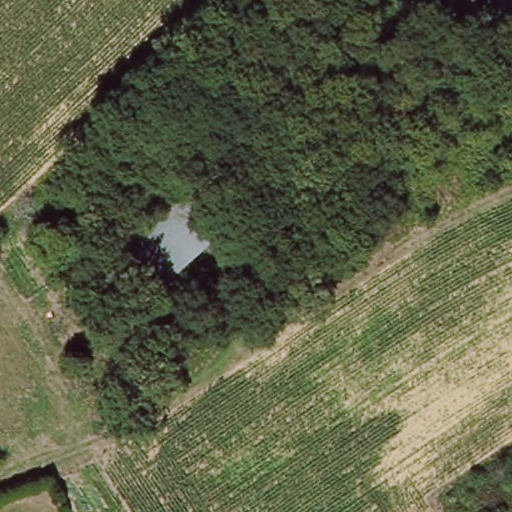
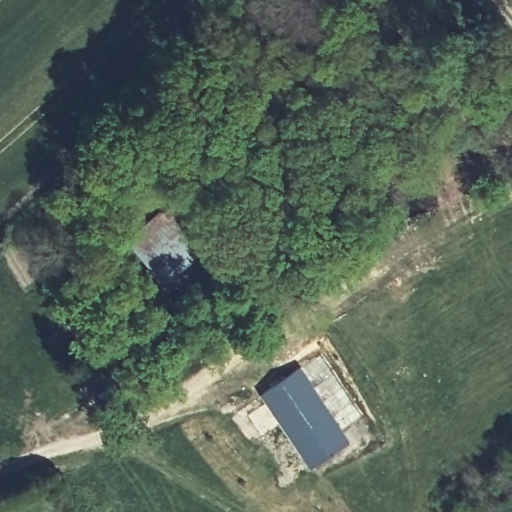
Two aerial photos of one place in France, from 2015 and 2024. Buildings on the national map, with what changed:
unchanged [(133,230),(180,188),(221,232),(174,274),(133,230)]
new [(311,470),(258,395),(299,367),(350,442),(311,470)]

